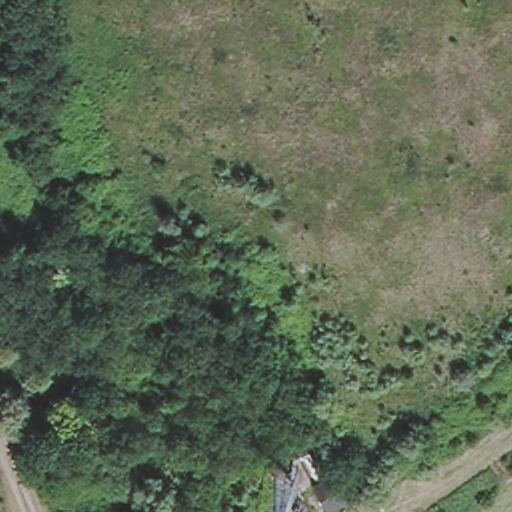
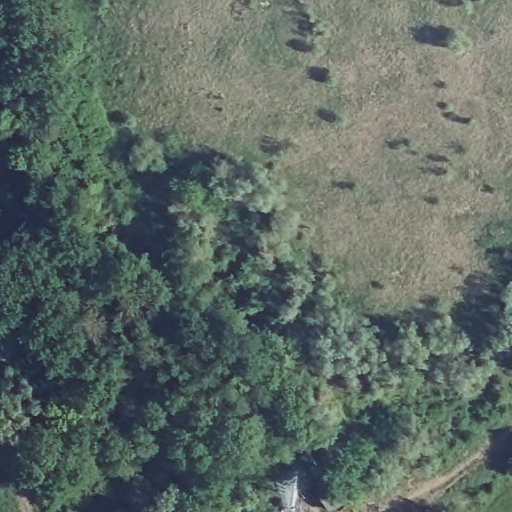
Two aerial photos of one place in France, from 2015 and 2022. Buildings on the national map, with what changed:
unchanged [(337,472),(352,497),(333,509),(317,484),(337,472)]

